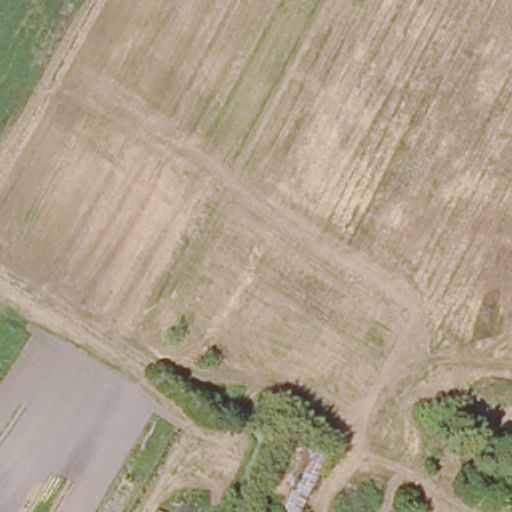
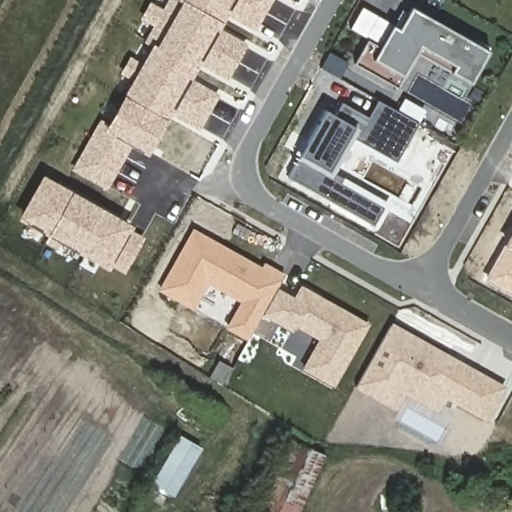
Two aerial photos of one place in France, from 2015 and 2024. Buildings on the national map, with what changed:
new [(256,30),(227,15),(220,29),(247,45),(227,79),(200,65),(191,80),(220,95),(199,130),(171,115),(148,156),(131,145),(107,190),(71,170),(100,119),(107,124),(132,80),(120,74),(129,56),(141,64),(151,47),(143,42),(153,25),(140,18),(149,1),(162,9),(168,0),(273,0),(256,30)]
new [(407,69),(403,75),(402,75),(397,87),(355,62),(368,39),(350,27),(362,7),(392,25),(399,29),(411,7),(489,51),(471,83),(415,53),(407,69)]
new [(332,172),(390,204),(378,227),(289,177),(297,159),(326,110),(333,114),(341,101),(368,117),(377,100),(418,123),(394,167),(349,144),(332,172)]
new [(130,230),(144,238),(124,274),(110,266),(108,270),(17,219),(42,175),(133,226),(130,230)]
new [(158,290),(192,228),(262,266),(264,262),(285,273),(247,340),(225,328),(240,302),(209,285),(194,310),(158,290)]
new [(503,245),(512,230),(512,295),(485,280),(503,245)]
new [(292,331),(263,315),(278,288),(293,297),(300,285),(369,324),(334,386),(301,368),(318,340),(295,326),(292,331)]
new [(396,410),(355,387),(391,322),(506,387),(488,421),(446,400),(439,412),(405,394),(396,410)]
new [(181,436),(201,448),(174,496),(154,485),(181,436)]
unchanged [(330,460),(304,512),(259,512),(293,443),(330,460)]
unchanged [(491,464),(485,477),(469,470),(475,456),(491,464)]

